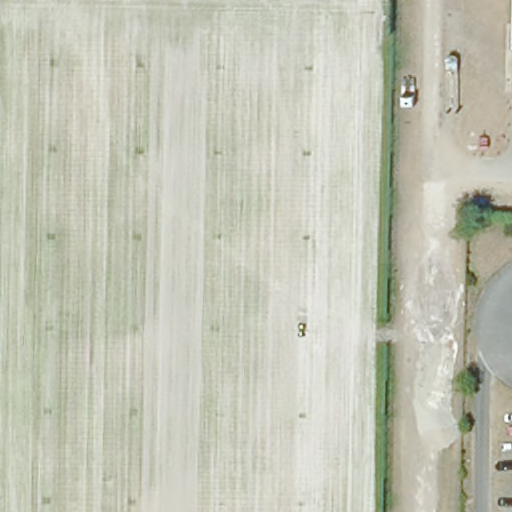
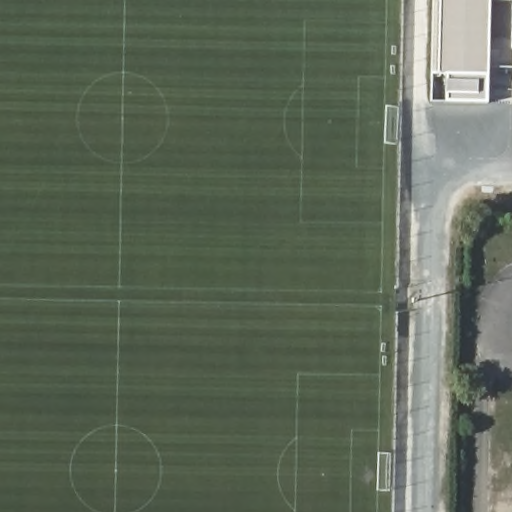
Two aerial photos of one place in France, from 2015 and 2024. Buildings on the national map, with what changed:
new [(488,103),(435,101),(438,0),(490,0),(488,103)]
unchanged [(511,0),(512,0),(512,42),(509,42),(511,0)]

